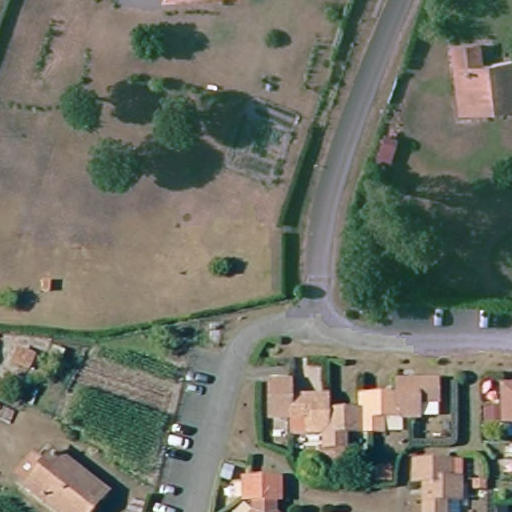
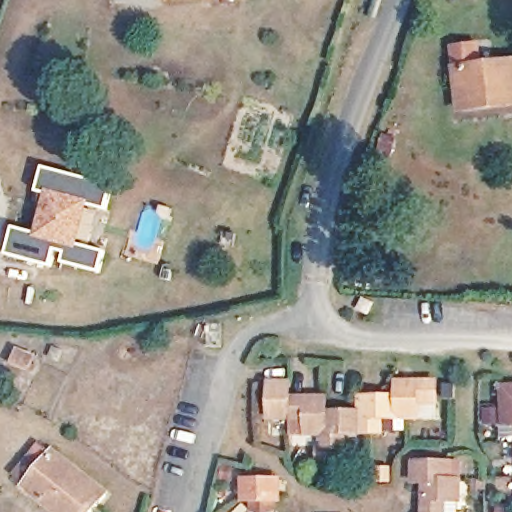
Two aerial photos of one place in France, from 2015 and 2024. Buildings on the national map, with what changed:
unchanged [(459,94),(454,49),(483,44),(486,65),(512,61),(512,107),(507,107),(461,114),(459,94)]
new [(8,253),(15,227),(37,232),(47,194),(37,192),(44,166),(114,183),(108,209),(89,204),(79,245),(104,251),(100,270),(65,262),(68,252),(54,248),(51,263),(8,253)]
unchanged [(290,396),(325,395),(326,412),(358,411),(357,394),(397,394),(397,382),(435,382),(435,410),(409,411),(409,423),(383,424),(382,440),(344,440),(342,455),(318,455),(317,439),(301,437),(301,423),(266,422),(264,385),(290,385),(290,396)]
unchanged [(502,423),(502,390),(512,389),(512,424),(502,423)]
unchanged [(92,512),(59,512),(27,486),(24,483),(17,477),(36,452),(46,461),(53,455),(104,496),(92,512)]
unchanged [(428,476),(414,473),(416,457),(452,456),(454,474),(463,475),(465,497),(451,498),(450,512),(428,512),(430,510),(428,476)]
unchanged [(237,504),(238,482),(277,482),(278,501),(271,502),(271,512),(249,512),(248,505),(237,504)]

